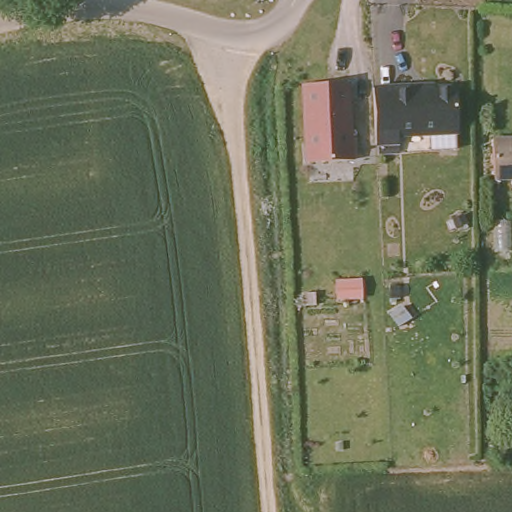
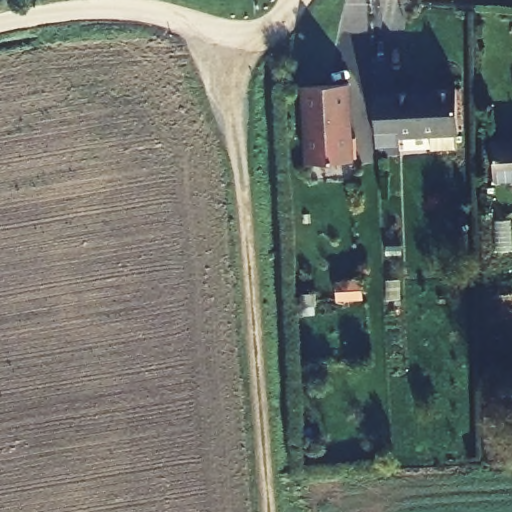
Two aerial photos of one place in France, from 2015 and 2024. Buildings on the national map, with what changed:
unchanged [(302,83),(352,82),(355,160),(307,161),(302,83)]
unchanged [(377,133),(374,85),(457,82),(460,132),(400,137),(400,150),(378,149),(377,133)]
unchanged [(492,149),(512,149),(512,180),(494,180),(492,149)]

